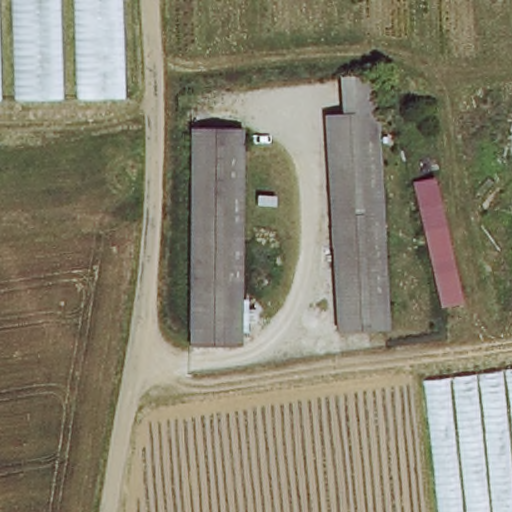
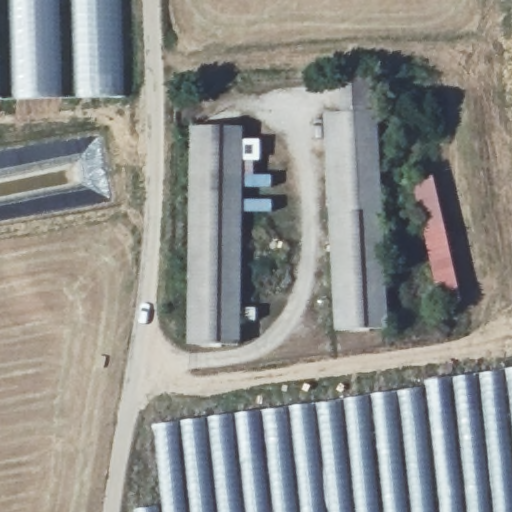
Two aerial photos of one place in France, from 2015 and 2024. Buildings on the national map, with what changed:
unchanged [(0,101),(0,0),(122,0),(126,98),(0,101)]
unchanged [(340,74),(369,73),(371,109),(342,110),(340,74)]
unchanged [(389,329),(339,332),(323,111),(342,110),(371,109),(389,329)]
unchanged [(193,342),(195,126),(241,126),(241,343),(193,342)]
unchanged [(412,182),(434,177),(463,303),(443,308),(412,182)]
unchanged [(428,390),(427,381),(512,371),(512,512),(441,512),(428,390)]
new [(441,512),(140,512),(140,509),(166,506),(157,425),(428,390),(441,512)]

